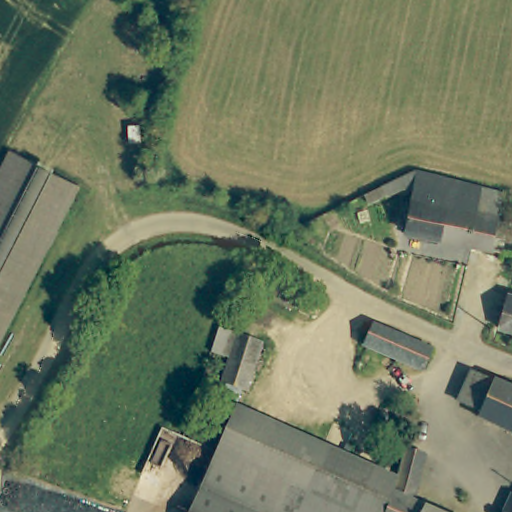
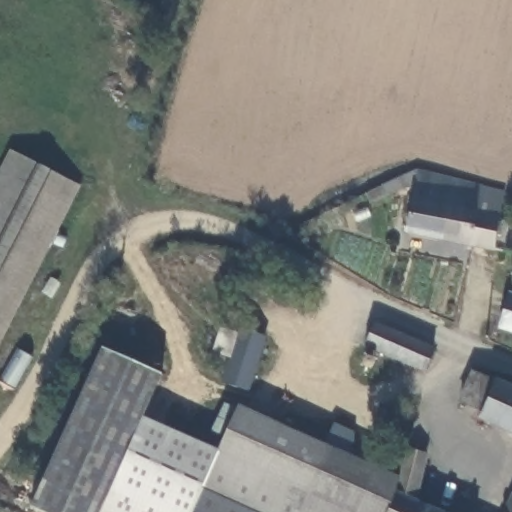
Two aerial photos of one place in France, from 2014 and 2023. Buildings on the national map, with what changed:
unchanged [(16,157),(82,188),(0,350),(0,188),(16,157)]
unchanged [(421,172),(506,194),(499,248),(410,230),(414,187),(383,197),(383,196),(368,203),(366,197),(421,172)]
unchanged [(512,300),(512,337),(495,331),(497,322),(507,298),(512,300)]
unchanged [(375,321),(431,350),(422,368),(365,343),(375,321)]
unchanged [(224,362),(213,357),(222,333),(232,336),(262,346),(247,396),(221,383),(229,363),(224,362)]
new [(38,512),(30,508),(101,347),(161,374),(143,416),(221,452),(193,512),(38,512)]
unchanged [(512,391),(512,434),(481,421),(483,415),(459,403),(473,375),(512,391)]
unchanged [(327,450),(300,512),(193,512),(240,412),(327,450)]
unchanged [(400,482),(396,496),(391,494),(386,512),(300,512),(327,450),(400,482)]
unchanged [(396,496),(400,482),(403,468),(401,467),(402,467),(405,452),(408,453),(427,458),(417,501),(439,512),(386,512),(391,494),(396,496)]
unchanged [(512,495),(512,512),(505,512),(512,495)]

